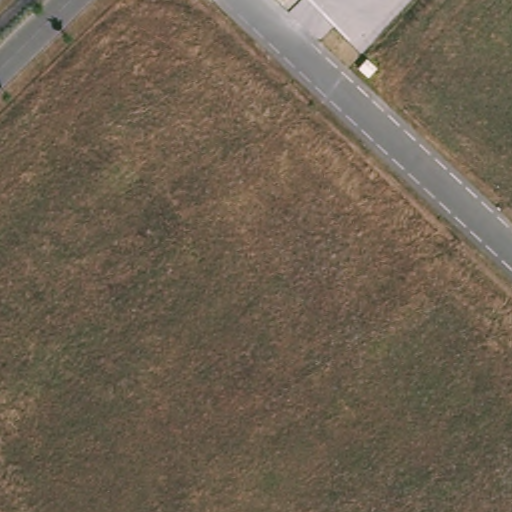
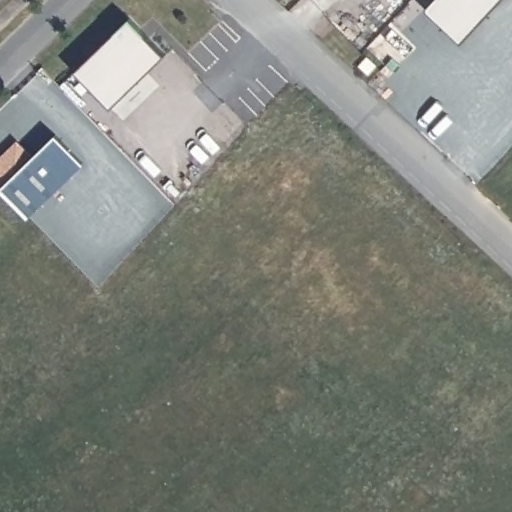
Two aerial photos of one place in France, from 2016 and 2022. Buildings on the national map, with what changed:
new [(426,9),(434,0),(498,0),(461,42),(426,9)]
new [(130,22),(168,57),(115,113),(77,77),(130,22)]
new [(11,147),(22,147),(34,158),(56,136),(83,163),(28,217),(0,189),(0,158),(11,147)]

